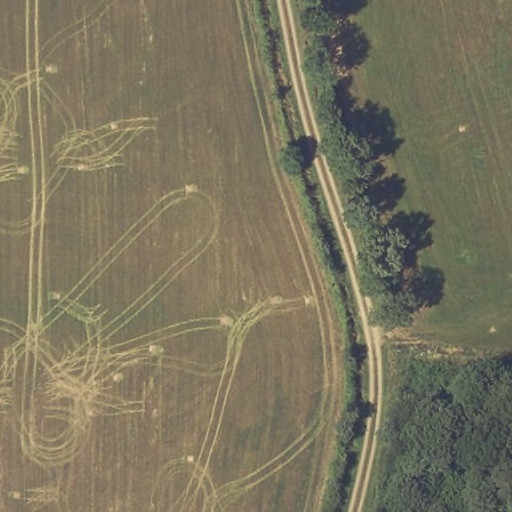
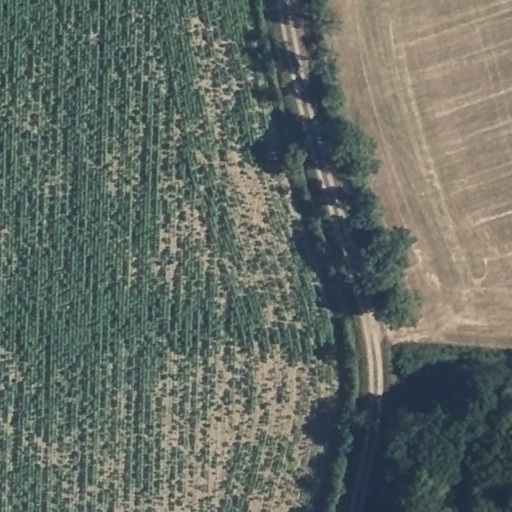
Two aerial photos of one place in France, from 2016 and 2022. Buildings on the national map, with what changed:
[]

